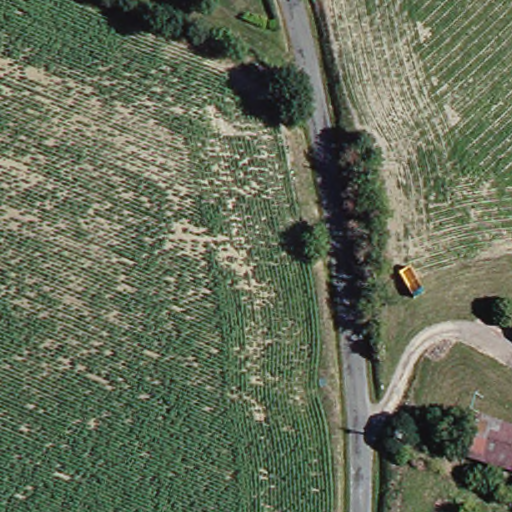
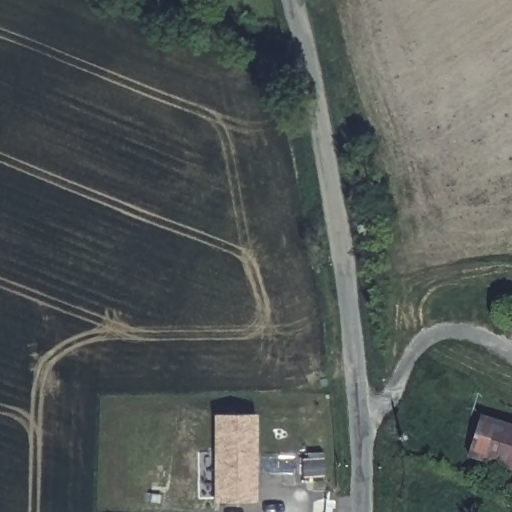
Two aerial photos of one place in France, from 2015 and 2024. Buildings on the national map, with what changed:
new [(260,417),(259,500),(217,499),(217,417),(260,417)]
unchanged [(489,460),(498,422),(512,425),(512,466),(489,460)]

